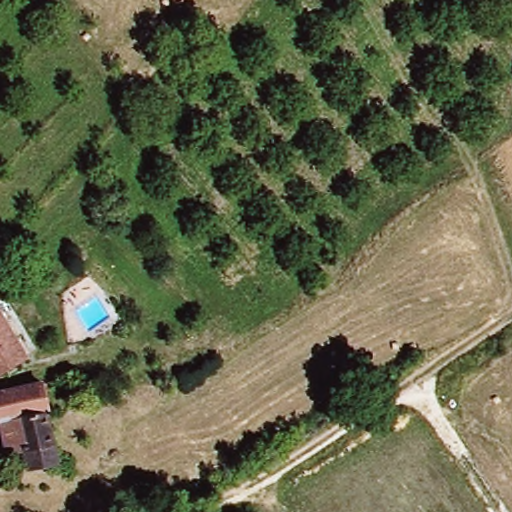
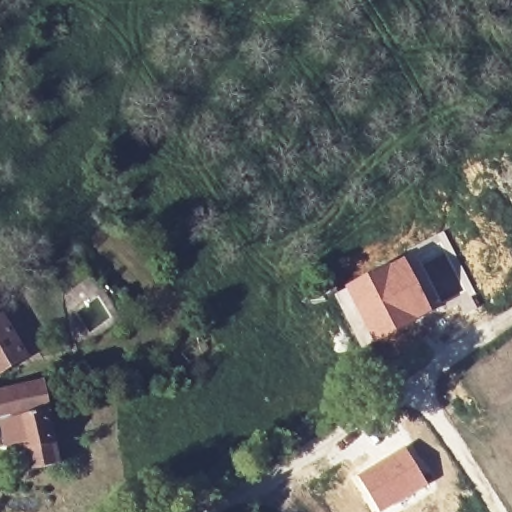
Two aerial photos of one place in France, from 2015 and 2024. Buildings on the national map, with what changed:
new [(359,277),(404,256),(432,312),(398,332),(361,350),(332,292),(359,277)]
unchanged [(0,364),(0,327),(17,353),(0,364)]
unchanged [(0,393),(36,386),(43,413),(0,424),(0,393)]
unchanged [(0,448),(0,424),(43,413),(49,435),(62,432),(68,463),(22,473),(21,470),(9,472),(7,457),(2,457),(0,448)]
new [(405,446),(429,485),(387,512),(379,512),(356,476),(405,446)]

